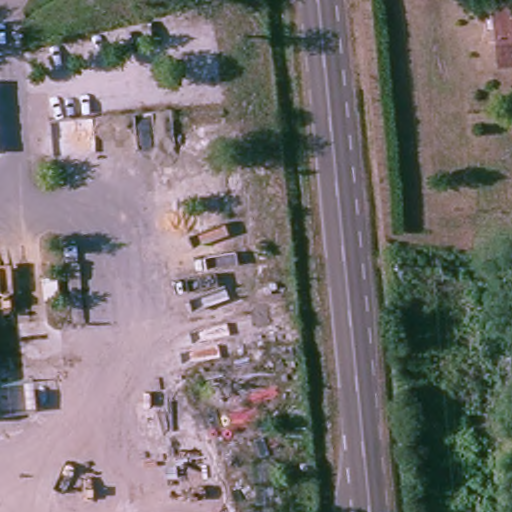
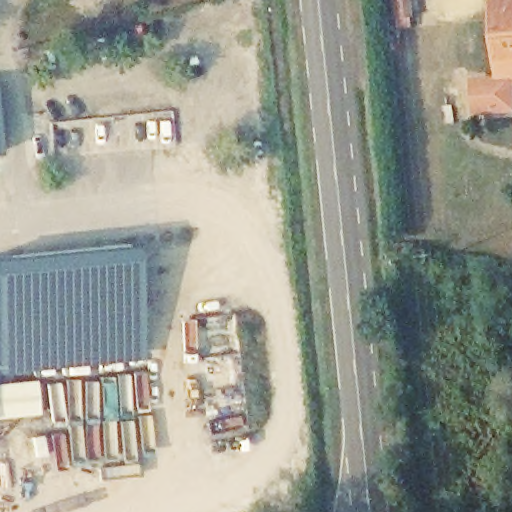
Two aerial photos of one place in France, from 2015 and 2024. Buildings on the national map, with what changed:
new [(489,0),(512,0),(512,83),(497,84),(489,0)]
demolished [(499,57),(497,0),(501,0),(512,0),(512,56),(499,57)]
new [(139,358),(0,372),(0,255),(129,243),(139,358)]
demolished [(428,260),(427,274),(404,276),(406,254),(428,260)]
new [(38,411),(0,415),(0,382),(35,378),(38,411)]

